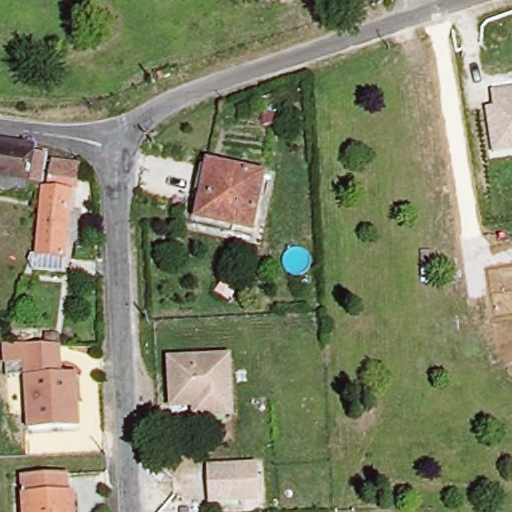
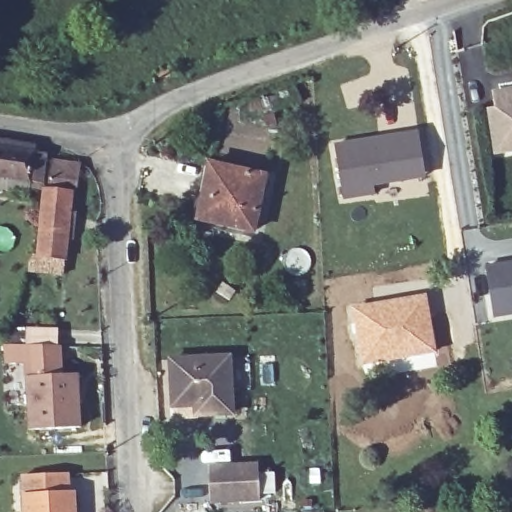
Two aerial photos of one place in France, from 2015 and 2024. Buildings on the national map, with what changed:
unchanged [(124,82),(134,77),(138,91),(127,94),(124,82)]
unchanged [(494,106),(491,88),(512,85),(512,152),(492,155),(486,108),(494,106)]
new [(419,130),(427,177),(375,186),(376,195),(343,200),(334,143),(419,130)]
unchanged [(21,178),(0,174),(0,142),(27,148),(21,178)]
unchanged [(195,217),(210,156),(267,171),(254,230),(195,217)]
unchanged [(46,185),(49,159),(74,162),(69,189),(46,185)]
unchanged [(66,194),(59,256),(34,254),(41,191),(66,194)]
unchanged [(512,262),(512,316),(492,319),(483,266),(512,262)]
new [(427,293),(437,352),(362,365),(351,306),(427,293)]
unchanged [(76,404),(78,430),(29,431),(25,366),(6,366),(6,346),(60,345),(61,375),(68,375),(75,375),(76,404)]
unchanged [(226,357),(229,415),(204,416),(203,405),(171,405),(169,359),(226,357)]
unchanged [(206,464),(259,461),(259,502),(209,505),(206,464)]
unchanged [(25,474),(71,471),(73,493),(78,494),(79,512),(27,512),(25,474)]

